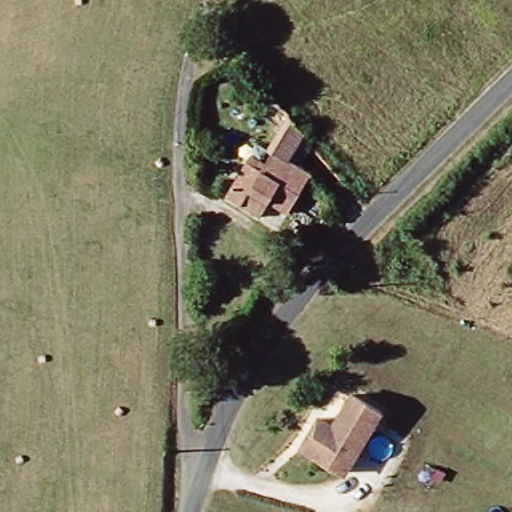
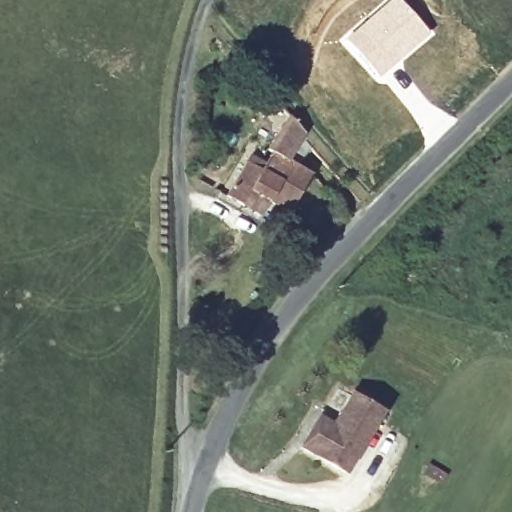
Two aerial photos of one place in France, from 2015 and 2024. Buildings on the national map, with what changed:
new [(385,0),(404,0),(432,32),(377,78),(340,38),(385,0)]
unchanged [(283,113),(310,135),(299,151),(313,159),(293,200),(276,192),(272,201),(235,184),(250,152),(267,160),(276,141),(269,138),(283,113)]
unchanged [(320,418),(334,426),(353,394),(383,412),(347,473),(303,447),(320,418)]

